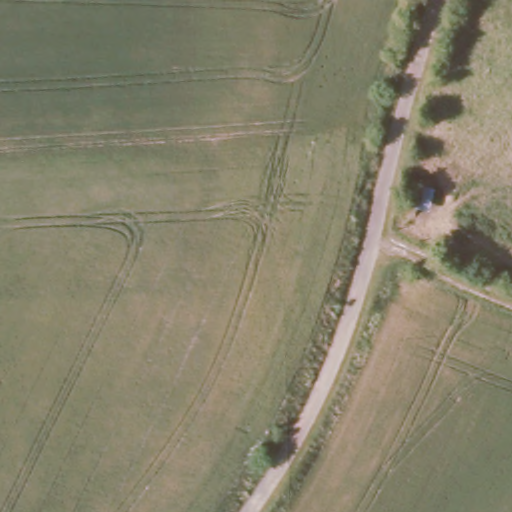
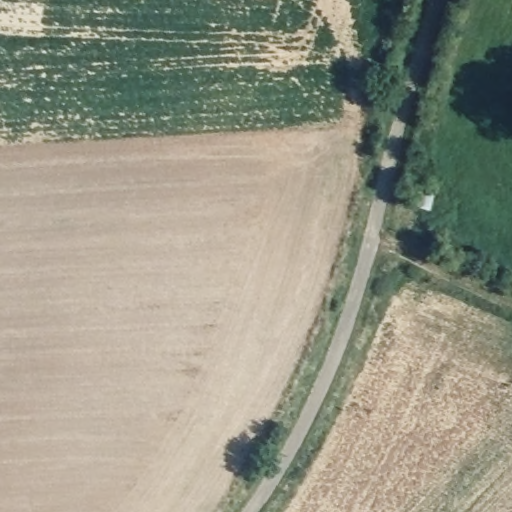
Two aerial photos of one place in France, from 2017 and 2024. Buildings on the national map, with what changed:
unchanged [(413,185),(436,189),(432,213),(407,207),(413,185)]

